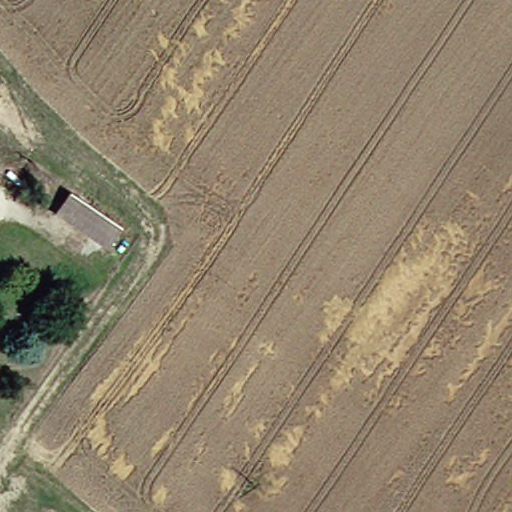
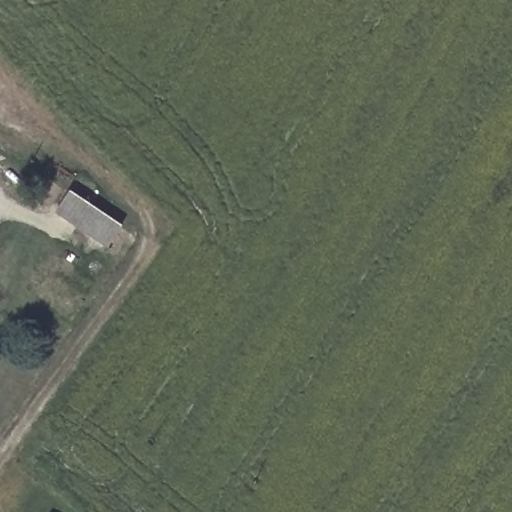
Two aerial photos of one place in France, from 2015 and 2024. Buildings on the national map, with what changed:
unchanged [(95,241),(61,215),(75,196),(109,219),(95,241)]

